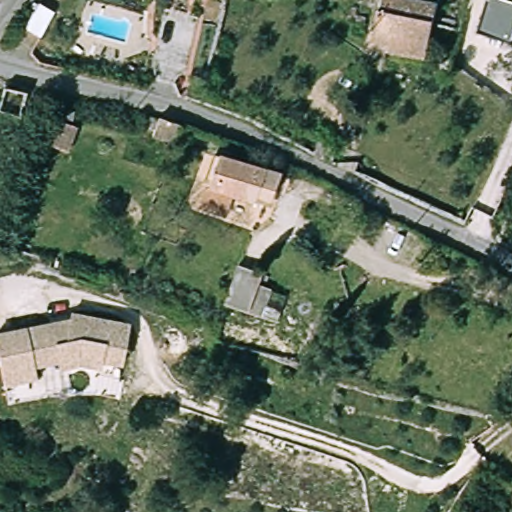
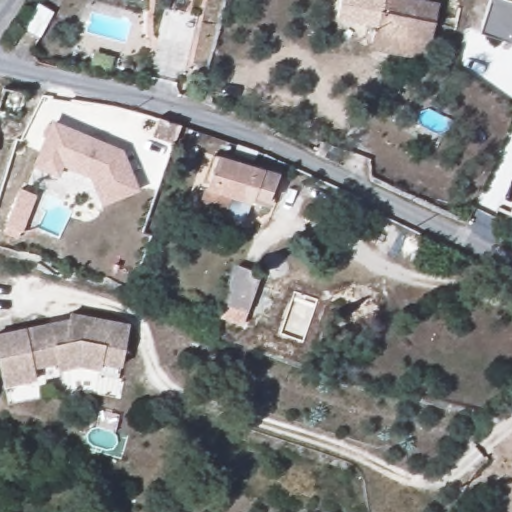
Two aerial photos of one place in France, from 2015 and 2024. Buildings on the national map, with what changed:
unchanged [(25,22),(37,0),(46,0),(56,5),(53,11),(41,31),(25,22)]
new [(379,26),(338,20),(341,0),(384,0),(379,26)]
unchanged [(375,48),(384,0),(405,0),(439,6),(429,57),(375,48)]
unchanged [(487,30),(495,0),(512,0),(512,38),(487,30)]
demolished [(5,121),(8,108),(0,104),(0,92),(37,106),(28,132),(5,121)]
new [(143,127),(148,116),(158,120),(159,118),(181,126),(174,144),(153,136),(155,131),(143,127)]
new [(122,150),(140,191),(101,207),(90,178),(63,168),(59,179),(31,166),(51,120),(122,150)]
unchanged [(246,199),(208,185),(223,152),(258,165),(254,175),(276,183),(266,207),(246,199)]
new [(5,226),(19,187),(33,193),(20,230),(5,226)]
unchanged [(216,304),(231,262),(236,263),(259,269),(258,278),(276,282),(265,317),(220,305),(216,304)]
unchanged [(0,335),(70,317),(136,326),(128,367),(110,363),(61,371),(60,363),(38,368),(40,383),(8,385),(0,338),(0,335)]

